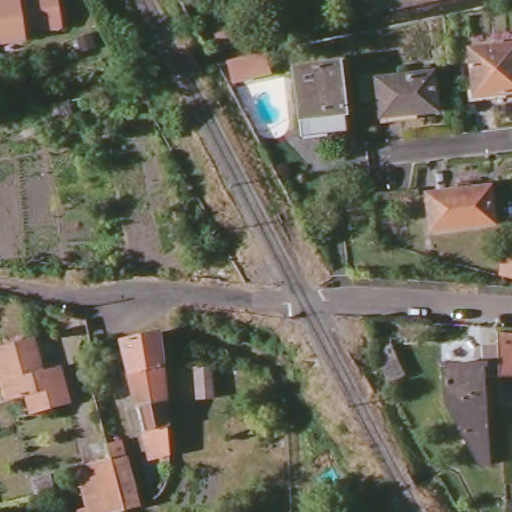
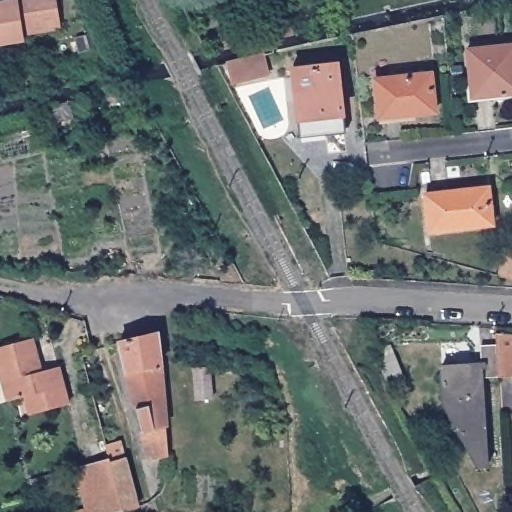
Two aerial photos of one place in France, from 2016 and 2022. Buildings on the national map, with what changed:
unchanged [(57,0),(62,27),(23,33),(24,40),(0,43),(0,3),(16,0),(57,0)]
unchanged [(273,38),(266,0),(289,0),(295,33),(273,38)]
unchanged [(245,27),(247,46),(212,51),(212,32),(245,27)]
unchanged [(474,99),(470,50),(512,45),(512,96),(474,99)]
unchanged [(240,62),(263,57),(267,74),(230,83),(226,66),(240,62)]
unchanged [(345,135),(325,137),(325,130),(300,132),(292,72),(337,67),(345,135)]
unchanged [(437,108),(380,115),(375,79),(432,70),(437,108)]
unchanged [(492,227),(428,234),(425,197),(489,191),(492,227)]
unchanged [(512,252),(512,281),(499,277),(500,251),(512,252)]
unchanged [(160,351),(183,444),(143,453),(114,334),(153,326),(160,351)]
unchanged [(496,344),(495,332),(512,334),(512,373),(498,373),(496,344)]
unchanged [(57,367),(65,403),(27,412),(23,396),(5,400),(0,380),(0,347),(30,341),(39,371),(57,367)]
unchanged [(498,375),(482,377),(485,427),(458,428),(457,414),(449,415),(448,405),(442,405),(440,367),(480,364),(480,345),(496,344),(498,373),(498,375)]
unchanged [(210,372),(212,402),(204,403),(197,404),(194,374),(202,373),(210,372)]
unchanged [(88,512),(76,463),(80,462),(108,455),(110,463),(123,460),(137,510),(127,512),(86,512),(88,512)]

